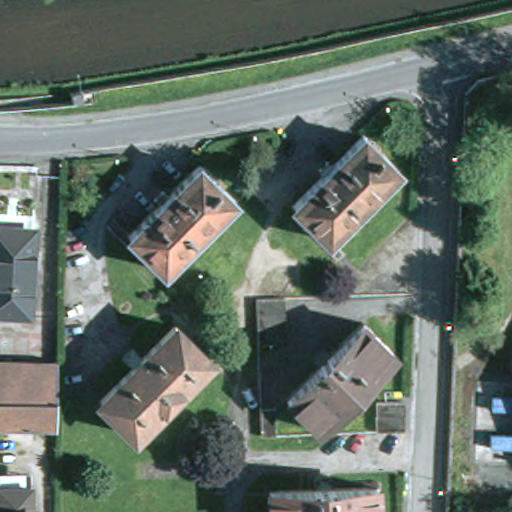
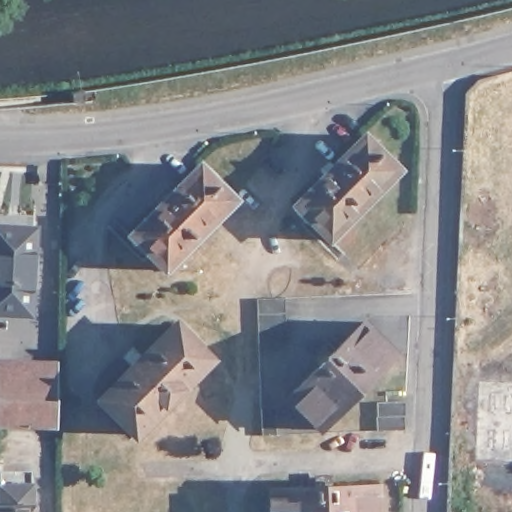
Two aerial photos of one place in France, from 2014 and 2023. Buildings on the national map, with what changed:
unchanged [(406,174),(335,244),(300,209),(331,179),(327,174),(336,165),(340,170),(371,140),(406,174)]
unchanged [(161,206),(157,202),(166,193),(171,197),(203,165),(239,202),(167,273),(130,236),(161,206)]
unchanged [(35,232),(32,318),(0,317),(0,231),(35,232)]
unchanged [(319,362),(330,351),(337,358),(370,325),(401,356),(326,434),(294,401),(326,369),(319,362)]
unchanged [(144,355),(149,359),(182,327),(216,361),(141,436),(107,401),(139,369),(135,364),(144,355)]
unchanged [(0,423),(0,370),(59,370),(59,424),(0,423)]
unchanged [(317,488),(333,487),(334,497),(379,496),(379,512),(272,512),(272,498),(317,497),(317,488)]
unchanged [(34,490),(34,512),(0,512),(0,490),(34,490)]

